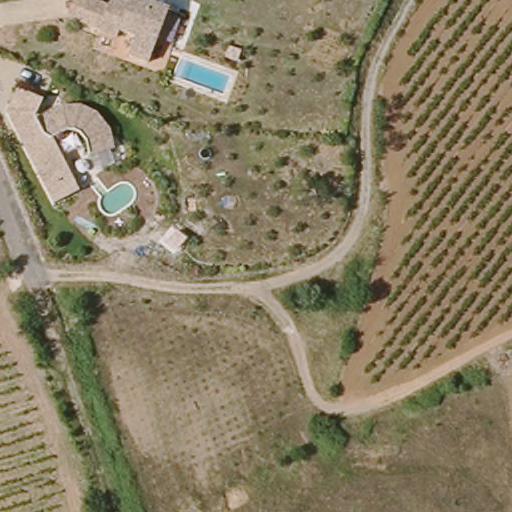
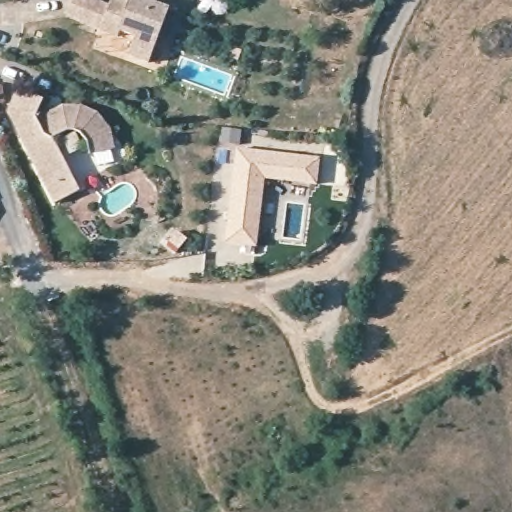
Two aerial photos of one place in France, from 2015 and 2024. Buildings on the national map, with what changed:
unchanged [(128,52),(132,40),(96,27),(68,16),(75,0),(137,0),(164,7),(145,58),(128,52)]
unchanged [(78,109),(93,120),(104,139),(104,156),(97,156),(97,159),(79,160),(79,145),(75,136),(69,133),(61,134),(48,139),(62,176),(71,188),(48,204),(38,190),(6,110),(18,82),(41,92),(45,94),(51,110),(59,107),(78,109)]
new [(317,185),(265,179),(256,247),(221,243),(235,146),(236,146),(217,143),(220,126),(240,129),(238,146),(320,156),(317,185)]

